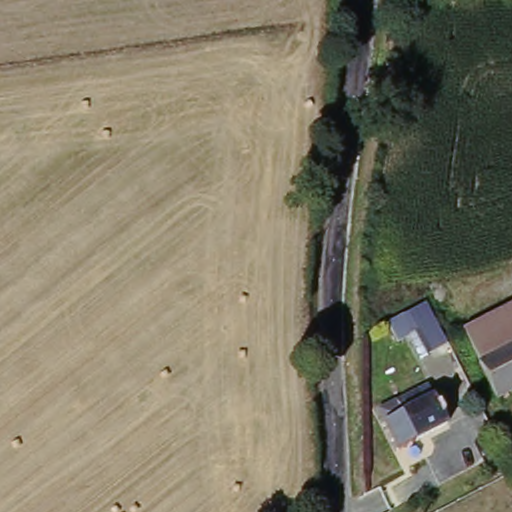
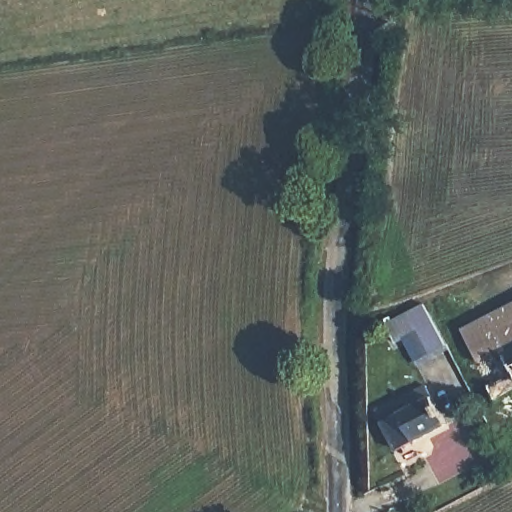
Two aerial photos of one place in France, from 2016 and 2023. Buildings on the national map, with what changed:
unchanged [(424,308),(445,348),(428,357),(415,335),(395,345),(386,328),(424,308)]
unchanged [(512,310),(512,352),(486,365),(469,333),(512,310)]
unchanged [(512,396),(501,402),(482,367),(486,365),(512,352),(512,396)]
unchanged [(407,410),(403,402),(436,385),(457,422),(406,450),(388,420),(407,410)]

